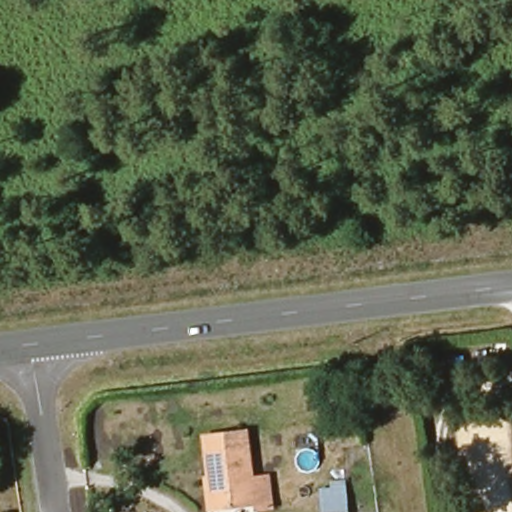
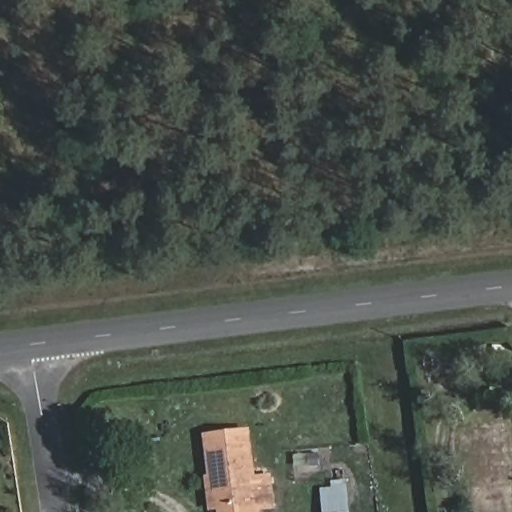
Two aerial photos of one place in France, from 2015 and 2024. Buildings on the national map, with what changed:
unchanged [(248,481),(264,480),(268,511),(258,512),(252,512),(251,507),(211,511),(202,440),(243,435),(248,481)]
unchanged [(346,512),(327,512),(333,512),(330,481),(342,483),(346,512)]

